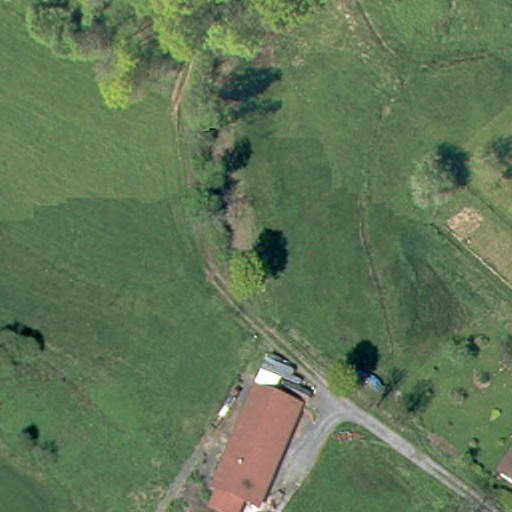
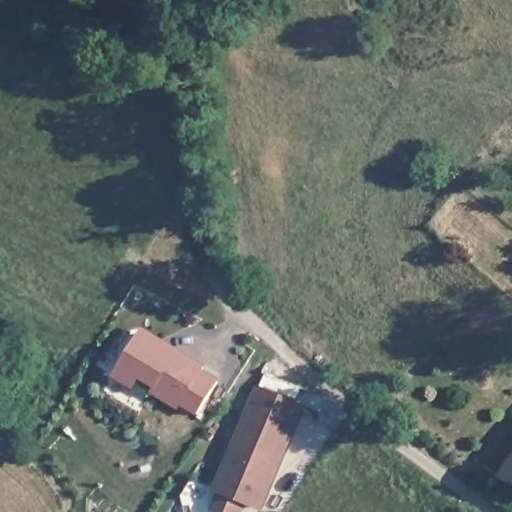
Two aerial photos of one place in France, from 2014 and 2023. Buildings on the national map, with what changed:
new [(204,368),(219,378),(198,415),(181,405),(178,410),(151,393),(154,387),(139,379),(135,387),(114,376),(142,326),(207,363),(204,368)]
unchanged [(254,386),(306,406),(264,508),(211,488),(254,386)]
unchanged [(512,473),(512,485),(507,481),(512,473)]

